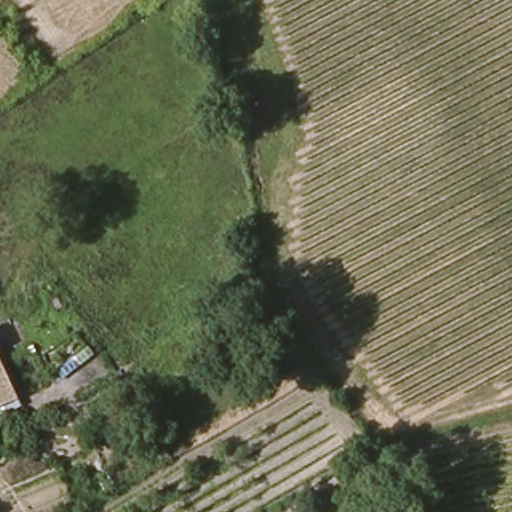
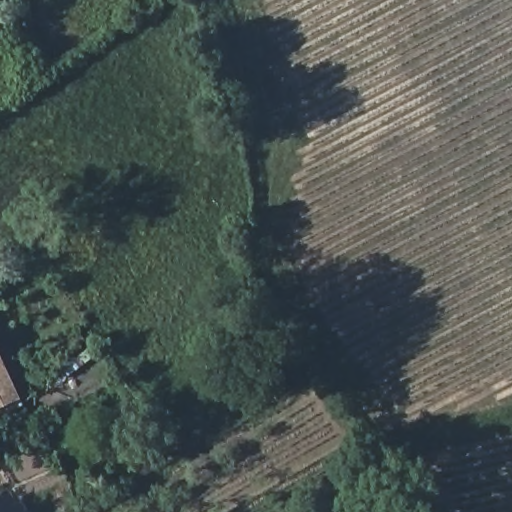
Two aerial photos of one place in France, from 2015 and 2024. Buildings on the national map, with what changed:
unchanged [(0,407),(0,346),(22,397),(0,407)]

